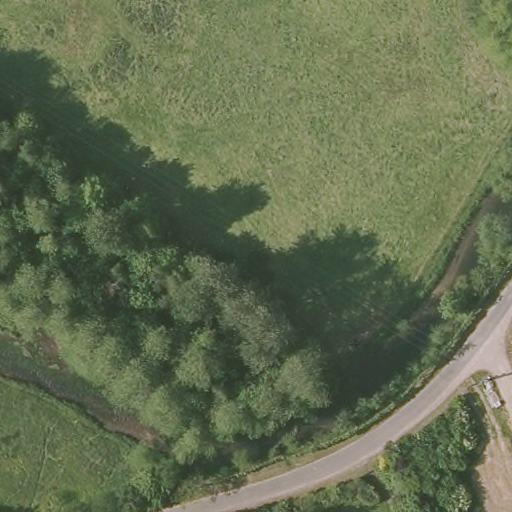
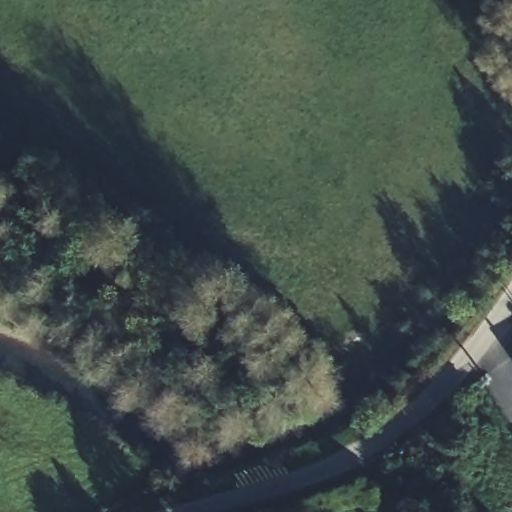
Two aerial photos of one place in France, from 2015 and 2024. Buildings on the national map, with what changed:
[]

